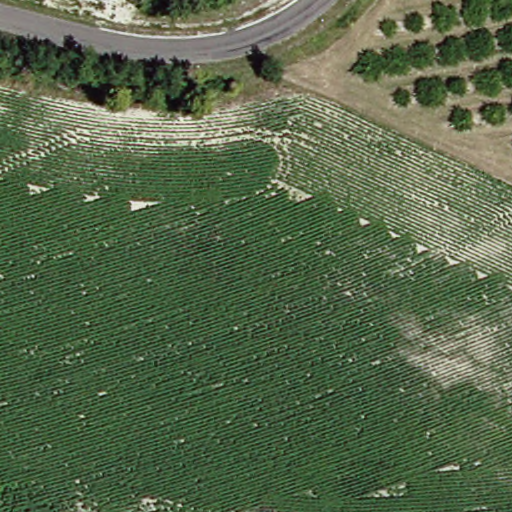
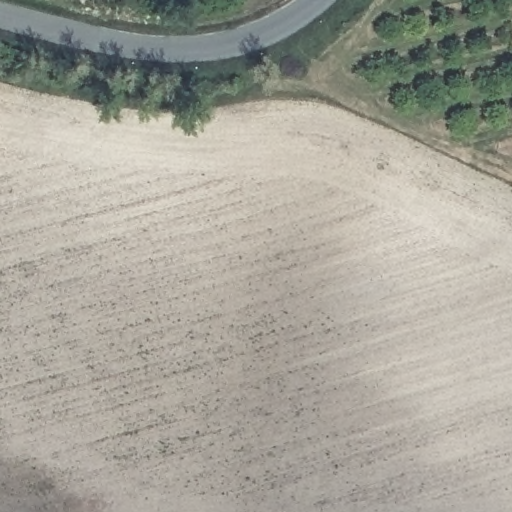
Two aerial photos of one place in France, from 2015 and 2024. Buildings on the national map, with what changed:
[]

